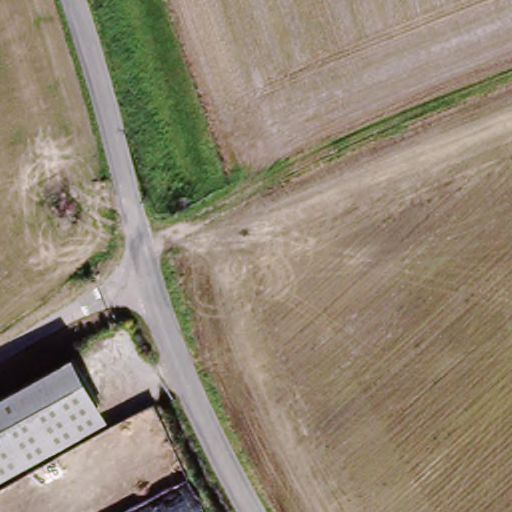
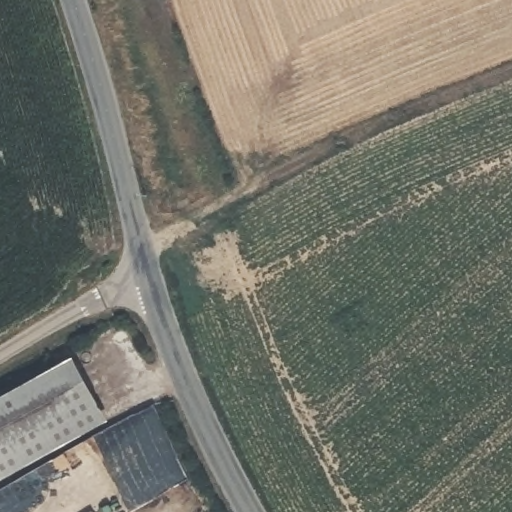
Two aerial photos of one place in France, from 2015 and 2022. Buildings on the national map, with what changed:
unchanged [(75,374),(101,418),(0,477),(0,416),(75,374)]

